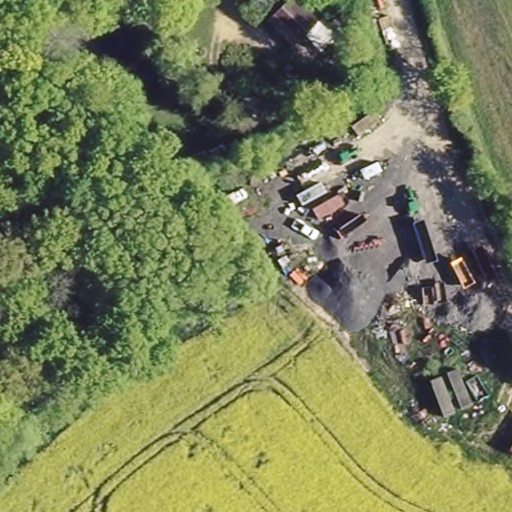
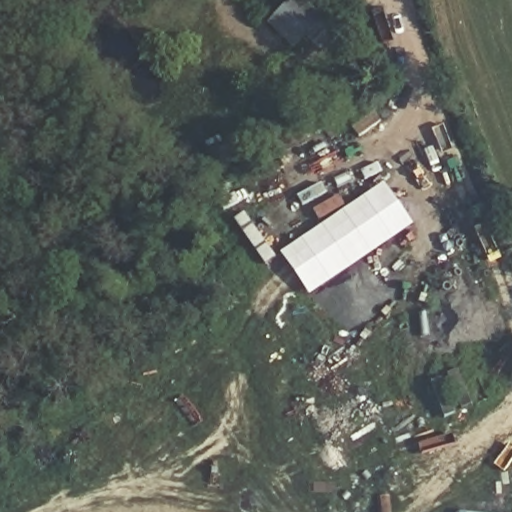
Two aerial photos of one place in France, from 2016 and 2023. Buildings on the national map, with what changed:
unchanged [(302,32),(277,7),(284,0),(293,0),(314,20),(302,32)]
new [(308,296),(279,253),(384,181),(414,224),(308,296)]

